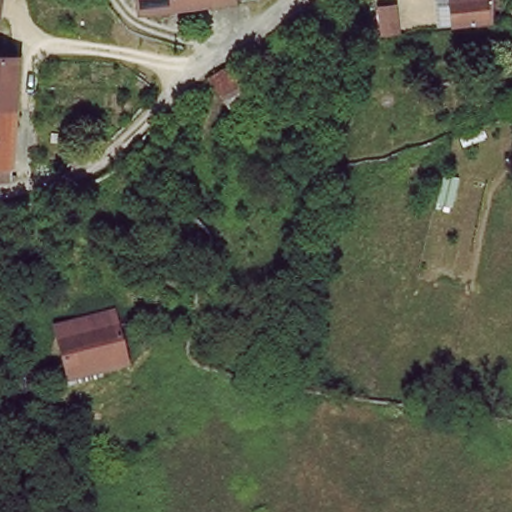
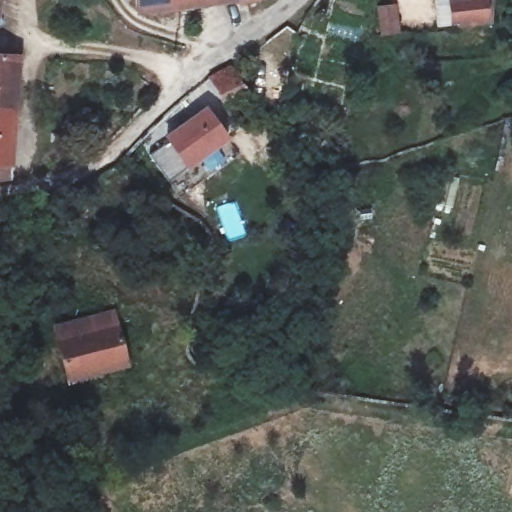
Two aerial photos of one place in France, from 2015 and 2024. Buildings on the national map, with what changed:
unchanged [(137,13),(136,0),(209,0),(210,4),(137,13)]
unchanged [(241,0),(210,4),(209,0),(241,0)]
unchanged [(477,27),(451,31),(450,0),(493,0),(489,26),(477,27)]
unchanged [(390,12),(393,36),(378,39),(375,14),(390,12)]
unchanged [(19,106),(0,105),(0,52),(22,54),(19,106)]
unchanged [(240,71),(255,95),(247,100),(237,108),(223,89),(213,76),(235,64),(240,71)]
unchanged [(15,174),(4,176),(0,176),(0,105),(19,106),(15,174)]
new [(150,155),(169,142),(165,136),(206,107),(231,140),(188,170),(170,181),(150,155)]
unchanged [(72,319),(110,307),(115,321),(127,361),(70,379),(57,339),(77,333),(72,319)]

